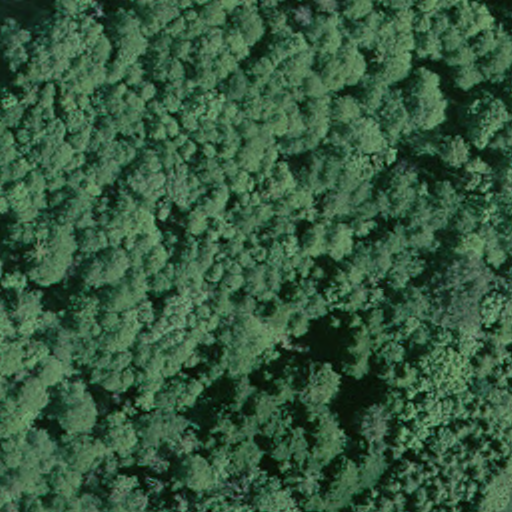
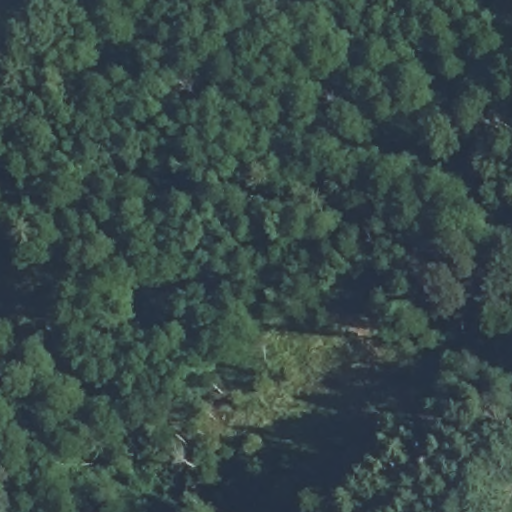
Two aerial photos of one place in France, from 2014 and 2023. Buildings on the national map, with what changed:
[]

